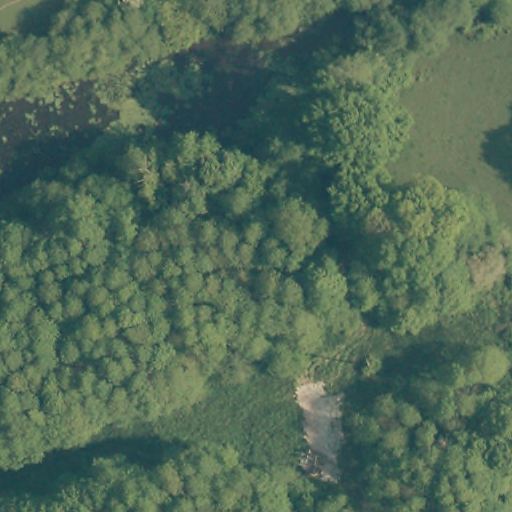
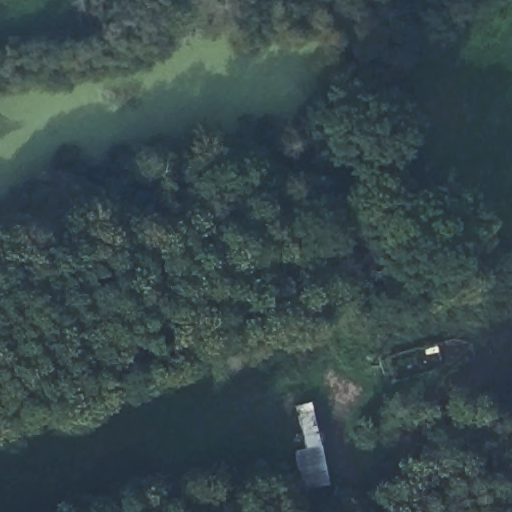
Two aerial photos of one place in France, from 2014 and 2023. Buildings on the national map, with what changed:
new [(321,445),(329,485),(303,490),(294,450),(305,448),(294,405),(310,402),(321,445)]

